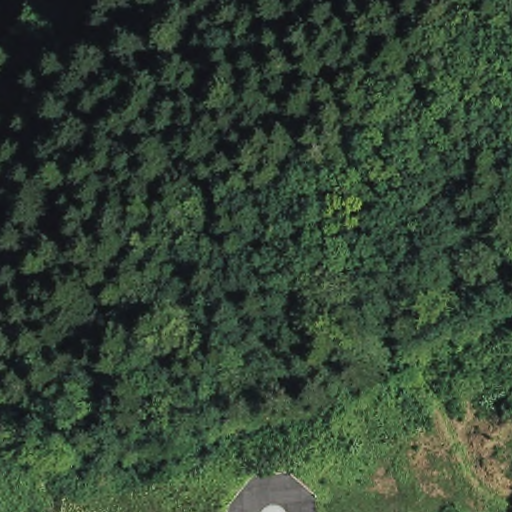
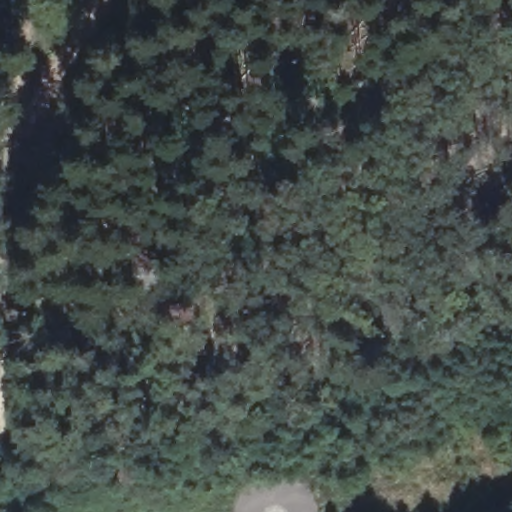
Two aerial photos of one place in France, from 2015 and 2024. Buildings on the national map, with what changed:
[]

